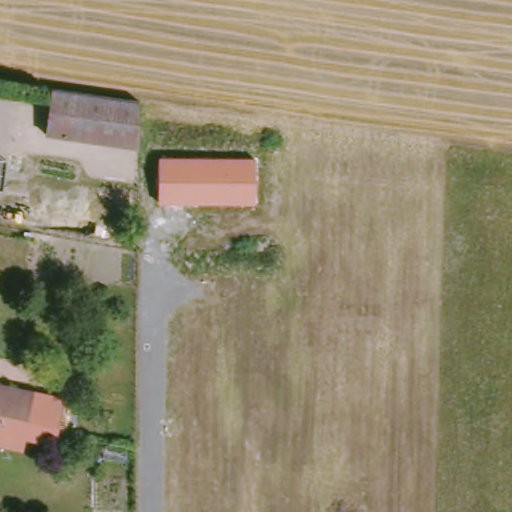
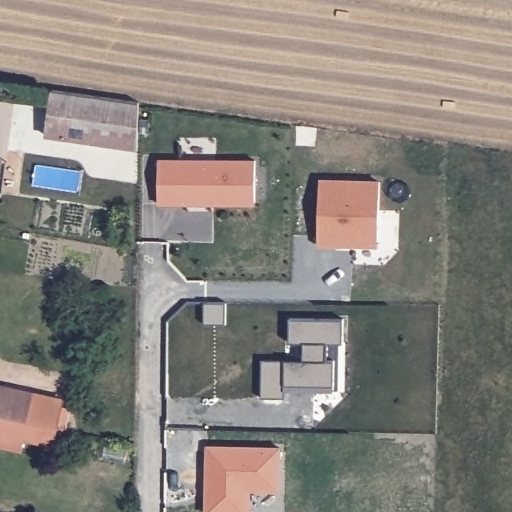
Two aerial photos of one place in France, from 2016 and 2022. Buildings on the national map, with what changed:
unchanged [(135,146),(43,136),(50,91),(137,100),(135,146)]
unchanged [(256,159),(255,206),(158,204),(160,158),(256,159)]
new [(320,244),(322,179),(380,180),(380,247),(320,244)]
new [(206,301),(228,301),(228,322),(206,322),(206,301)]
new [(262,397),(264,360),(287,360),(306,360),(306,342),(290,340),(292,317),(343,319),(343,342),(328,341),(328,360),(335,360),(333,384),(287,383),(285,397),(262,397)]
unchanged [(55,444),(25,438),(22,450),(0,445),(0,381),(65,393),(55,444)]
new [(208,482),(212,483),(212,476),(208,476),(210,446),(282,447),(281,486),(250,485),(250,512),(208,512),(208,482)]

